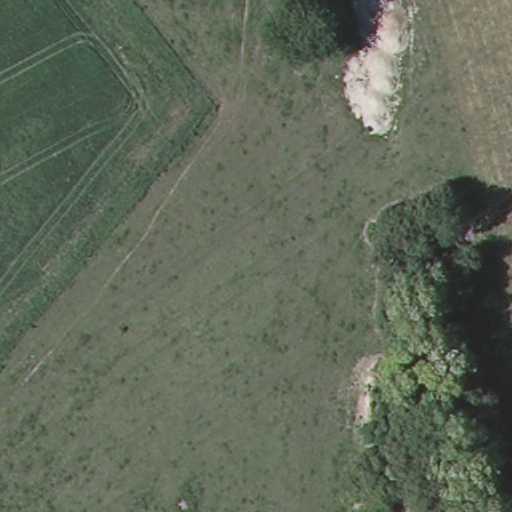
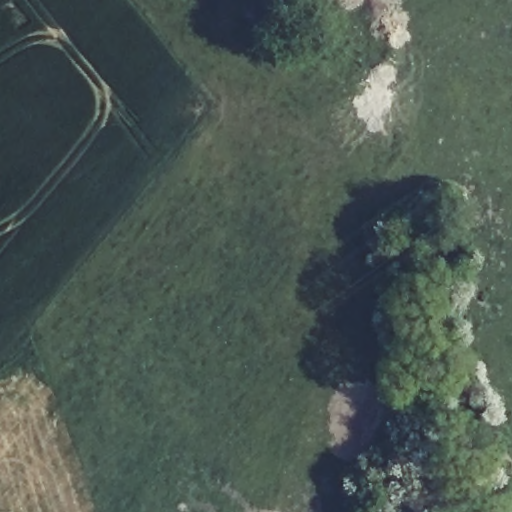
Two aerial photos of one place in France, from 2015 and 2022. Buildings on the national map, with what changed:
unchanged [(433,512),(389,512),(400,494),(433,512)]

